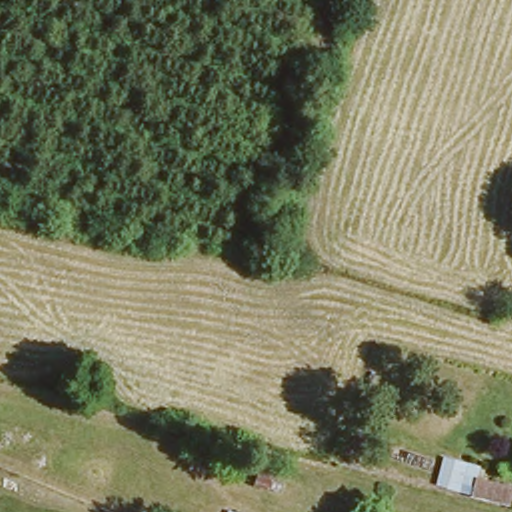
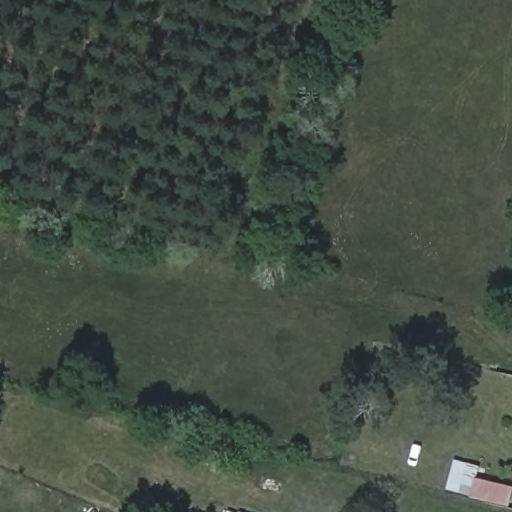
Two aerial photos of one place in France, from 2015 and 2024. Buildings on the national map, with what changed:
unchanged [(455,487),(459,474),(477,478),(502,484),(499,497),(474,492),(455,487)]
unchanged [(231,507),(245,512),(229,512),(231,507)]

